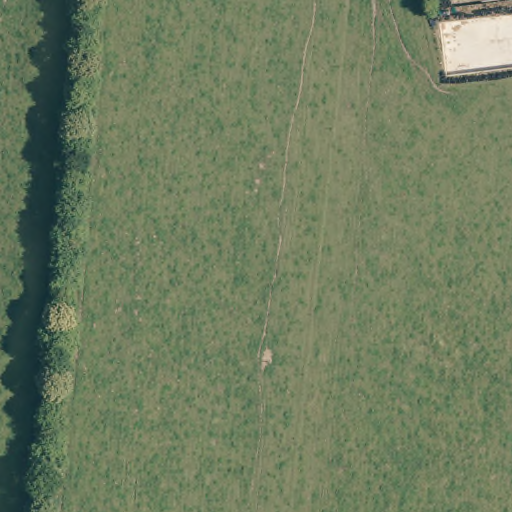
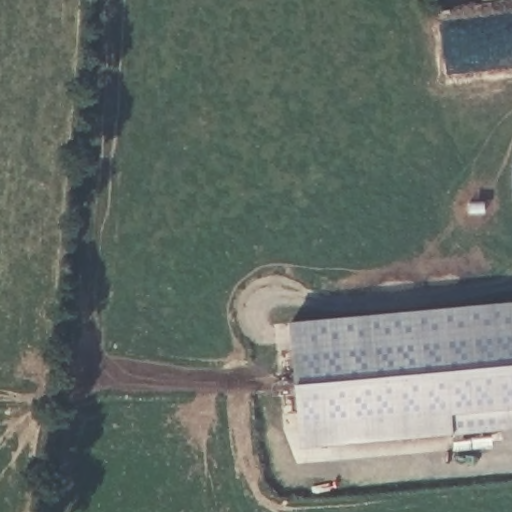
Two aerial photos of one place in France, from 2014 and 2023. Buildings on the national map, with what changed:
unchanged [(485,0),(495,0),(485,1),(485,0)]
new [(323,448),(298,451),(296,431),(285,326),(512,302),(512,408),(445,415),(447,434),(323,448)]
new [(512,408),(512,428),(447,434),(445,415),(512,408)]

